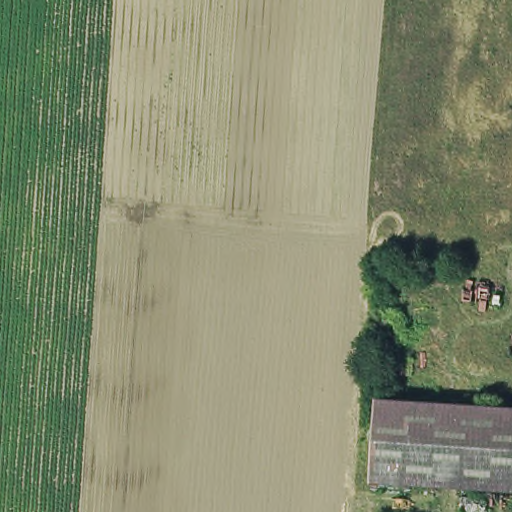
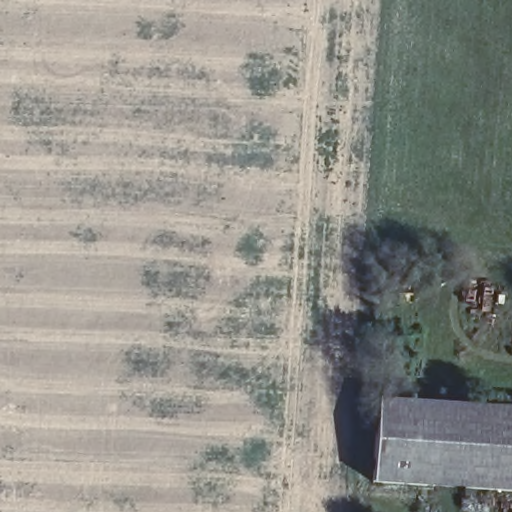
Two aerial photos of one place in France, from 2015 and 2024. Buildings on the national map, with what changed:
unchanged [(512,490),(366,480),(371,400),(512,408),(512,490)]

